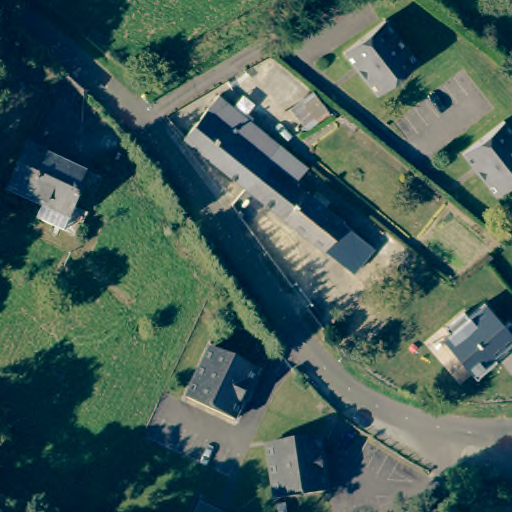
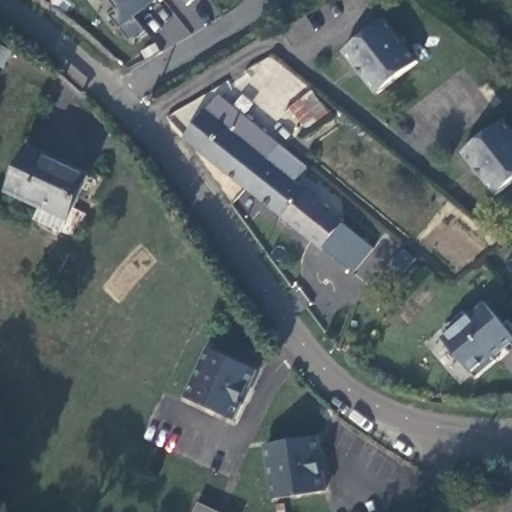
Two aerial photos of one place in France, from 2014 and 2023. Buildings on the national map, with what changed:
new [(137,18),(145,28),(130,40),(111,17),(118,10),(109,0),(158,0),(137,18)]
new [(187,5),(183,0),(194,0),(187,5)]
unchanged [(381,18),(414,59),(377,90),(343,49),(381,18)]
unchanged [(306,89),(322,110),(301,125),(285,105),(306,89)]
unchanged [(186,142),(184,141),(185,140),(217,100),(279,148),(246,189),(186,142)]
unchanged [(512,135),(512,175),(493,190),(460,149),(499,118),(512,135)]
unchanged [(81,172),(68,203),(83,210),(72,233),(31,215),(36,202),(3,188),(22,146),(81,172)]
unchanged [(295,184),(344,222),(322,250),(246,189),(279,148),(306,171),(295,184)]
unchanged [(370,250),(352,275),(322,250),(344,222),(370,250)]
unchanged [(484,302),(512,334),(512,342),(511,341),(493,356),(496,360),(476,378),(441,339),(484,302)]
unchanged [(229,418),(182,395),(206,346),(253,369),(229,418)]
unchanged [(326,490),(274,497),(266,444),(319,437),(326,490)]
unchanged [(200,512),(198,512),(198,511),(200,512)]

